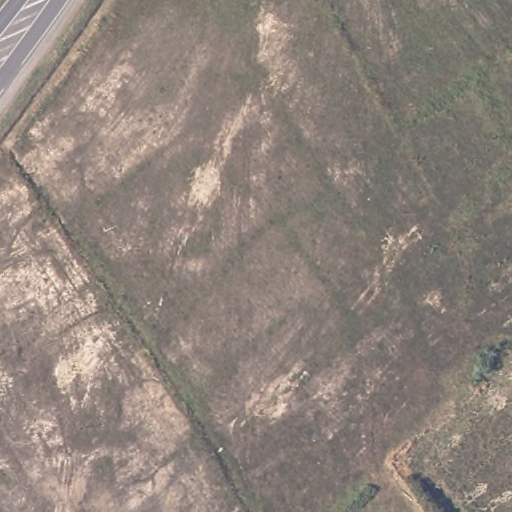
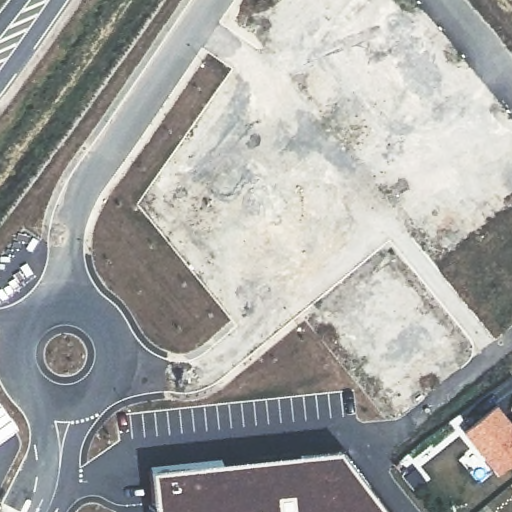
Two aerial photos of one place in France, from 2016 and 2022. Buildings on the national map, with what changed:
unchanged [(498,475),(463,432),(497,403),(511,420),(512,420),(512,464),(498,475)]
new [(152,468),(338,447),(390,512),(157,512),(152,468)]

